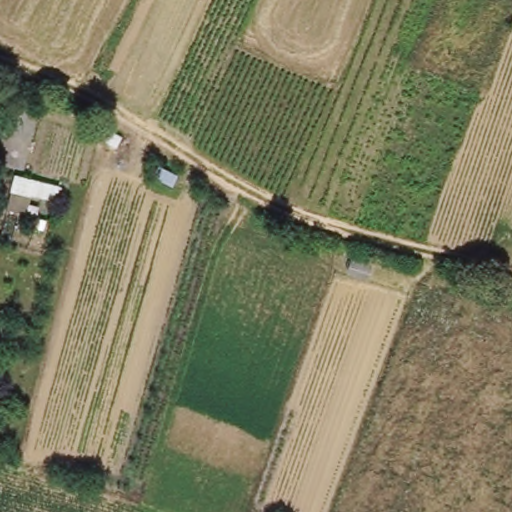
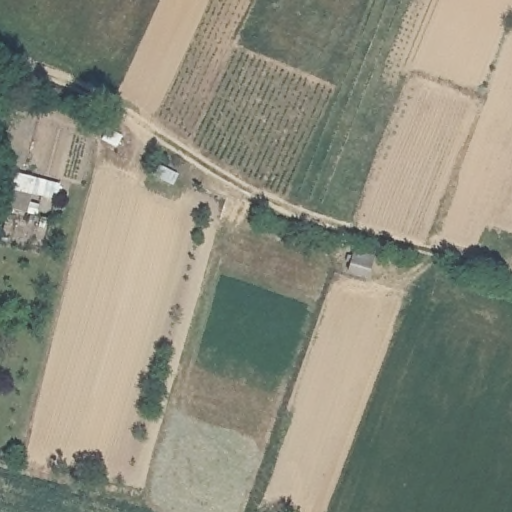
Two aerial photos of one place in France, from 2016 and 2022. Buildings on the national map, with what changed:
unchanged [(18,171),(64,186),(60,202),(35,197),(31,214),(6,210),(18,171)]

